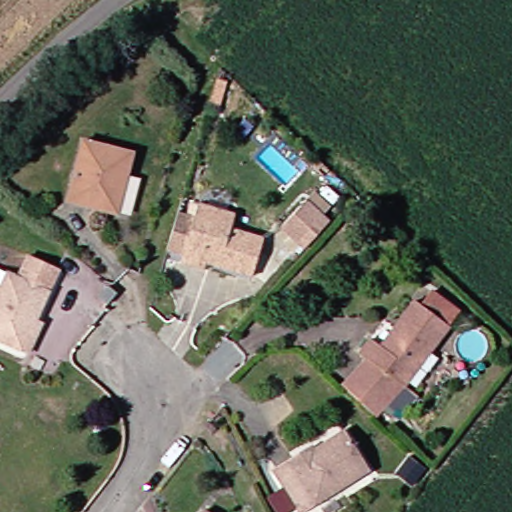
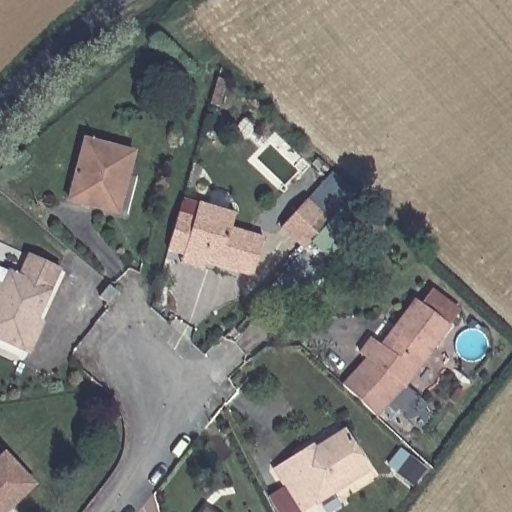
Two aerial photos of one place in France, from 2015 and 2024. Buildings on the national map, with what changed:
unchanged [(122,218),(72,208),(86,147),(138,158),(122,218)]
unchanged [(181,265),(183,257),(166,252),(178,212),(197,217),(202,200),(236,208),(231,226),(267,237),(256,277),(206,264),(203,272),(181,265)]
unchanged [(303,249),(281,229),(304,201),(328,222),(303,249)]
unchanged [(27,348),(0,334),(0,283),(10,287),(15,273),(57,290),(43,318),(49,323),(35,352),(27,348)]
demolished [(119,310),(100,297),(111,284),(128,297),(119,310)]
unchanged [(414,382),(381,416),(346,383),(370,357),(366,352),(376,343),(386,346),(423,302),(456,325),(414,382)]
unchanged [(311,512),(310,512),(279,471),(296,458),(317,444),(321,449),(352,432),(375,465),(311,512)]
new [(9,512),(0,512),(0,454),(4,451),(37,485),(9,512)]
unchanged [(216,512),(205,512),(209,507),(216,512)]

